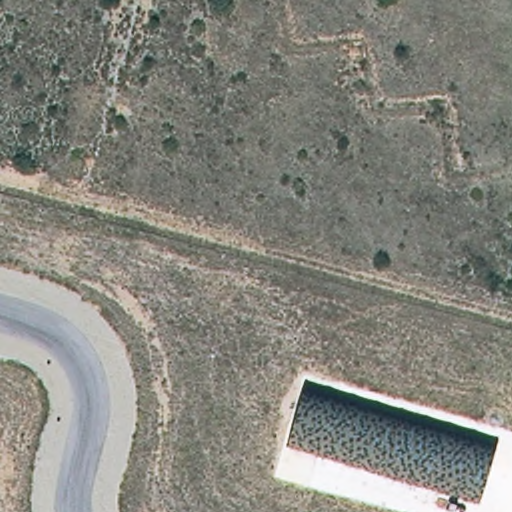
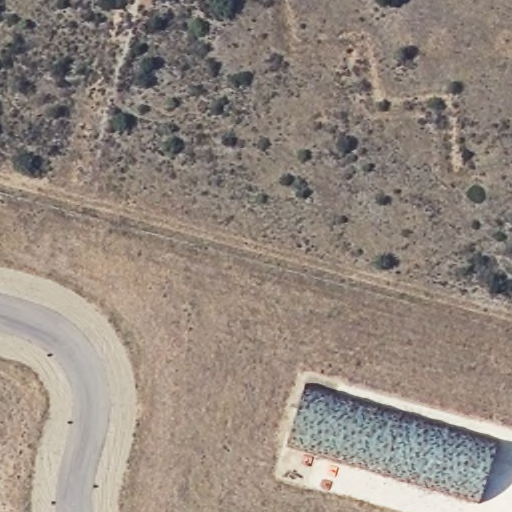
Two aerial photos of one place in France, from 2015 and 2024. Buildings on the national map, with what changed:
unchanged [(479,503),(288,445),(307,383),(499,440),(479,503)]

